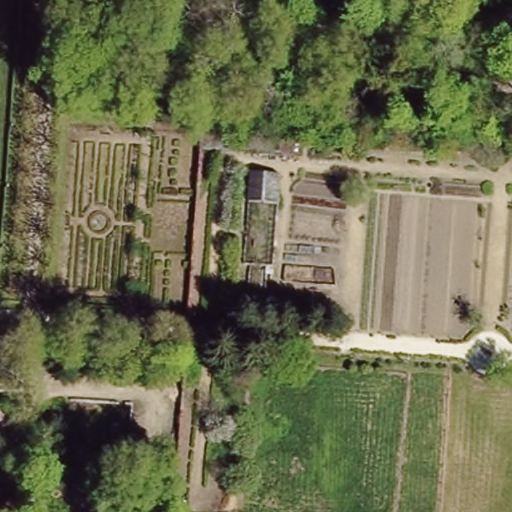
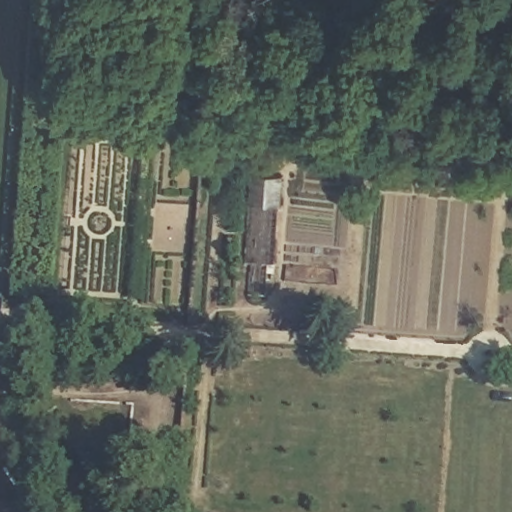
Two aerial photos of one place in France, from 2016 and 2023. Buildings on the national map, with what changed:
unchanged [(284,170),(283,208),(244,207),(247,168),(284,170)]
unchanged [(3,360),(0,371),(0,359),(3,360)]

